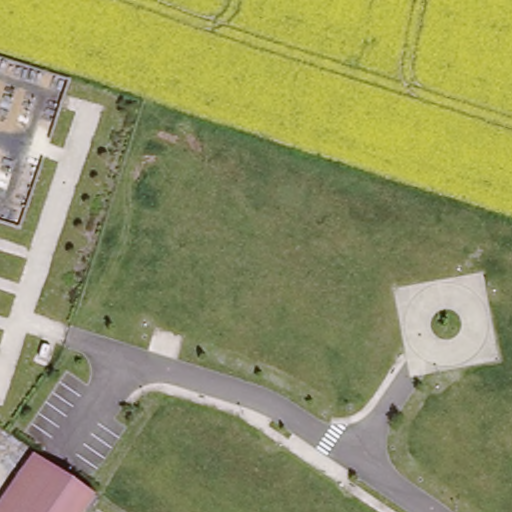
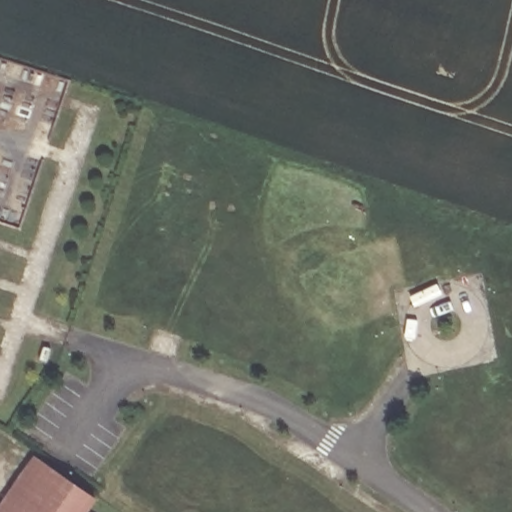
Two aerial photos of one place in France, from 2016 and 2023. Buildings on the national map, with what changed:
unchanged [(28,451),(38,458),(99,499),(90,512),(1,512),(31,469),(20,462),(28,451)]

